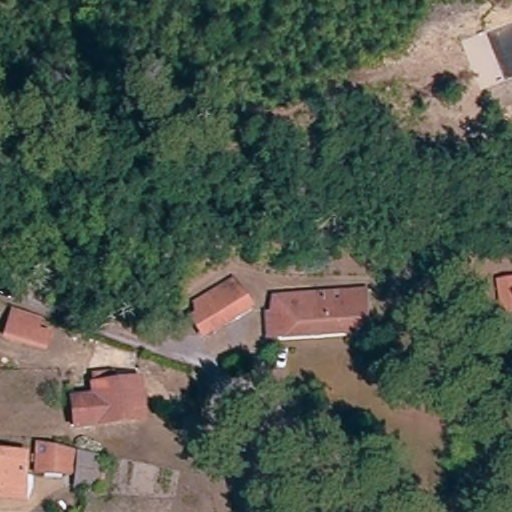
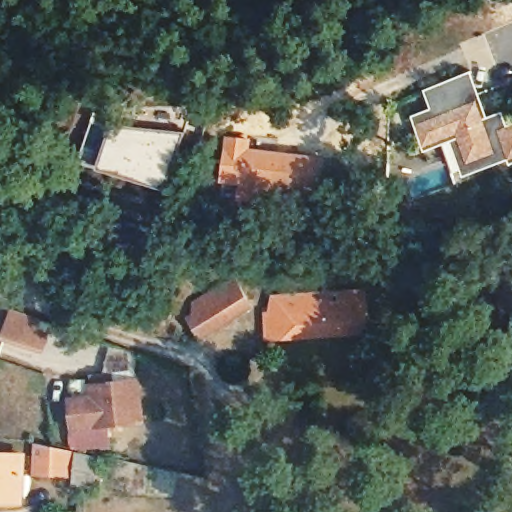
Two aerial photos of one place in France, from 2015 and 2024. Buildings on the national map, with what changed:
new [(431,88),(469,72),(474,71),(491,116),(506,110),(508,116),(511,124),(512,124),(512,156),(509,148),(471,162),(460,133),(426,146),(414,114),(434,107),(427,89),(431,88)]
new [(102,166),(116,123),(186,131),(168,188),(102,166)]
new [(471,162),(509,148),(512,156),(512,167),(506,169),(502,160),(467,173),(466,171),(464,172),(457,154),(432,163),(426,146),(460,133),(471,162)]
new [(243,184),(222,180),(227,136),(254,138),(253,147),(325,155),(321,189),(243,184)]
unchanged [(495,278),(512,276),(512,331),(501,332),(495,278)]
unchanged [(225,333),(213,315),(207,306),(242,282),(248,290),(260,308),(225,333)]
unchanged [(266,316),(275,316),(273,299),(342,294),(362,293),(365,332),(345,333),(268,339),(266,316)]
unchanged [(0,344),(8,318),(35,326),(32,336),(44,340),(39,356),(0,344)]
unchanged [(90,385),(109,382),(110,390),(140,386),(145,426),(73,434),(70,406),(92,403),(90,385)]
unchanged [(76,453),(98,457),(96,494),(73,491),(74,478),(33,476),(34,444),(76,453)]
unchanged [(24,512),(0,511),(0,455),(27,456),(24,512)]

